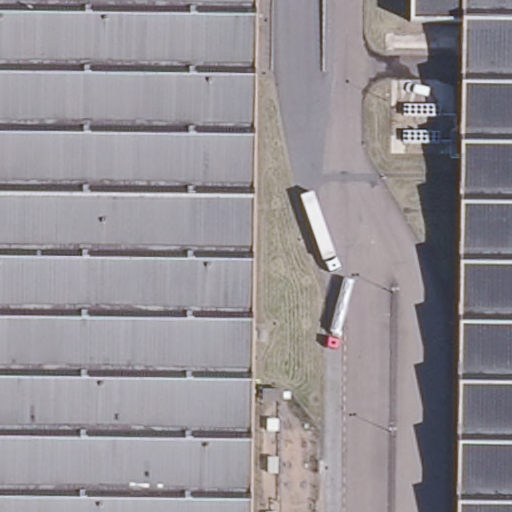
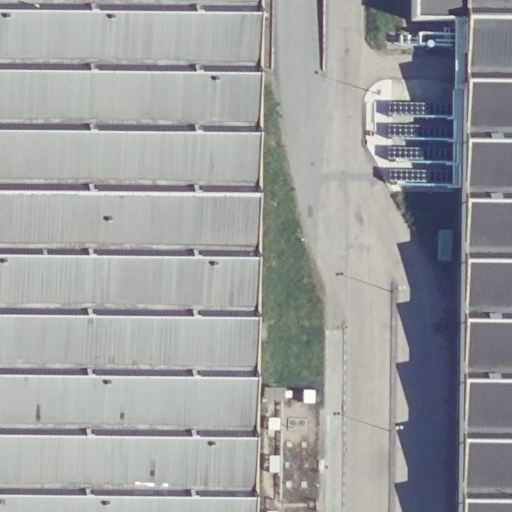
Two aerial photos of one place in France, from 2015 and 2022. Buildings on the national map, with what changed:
unchanged [(260,0),(254,512),(0,512),(0,0),(260,0)]
unchanged [(463,18),(413,17),(413,0),(512,0),(512,512),(458,512),(463,18)]

